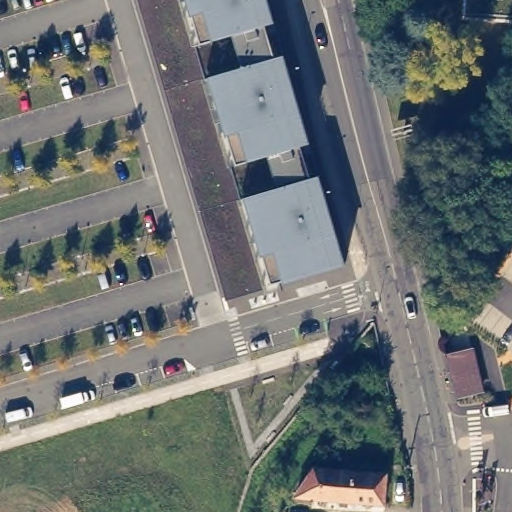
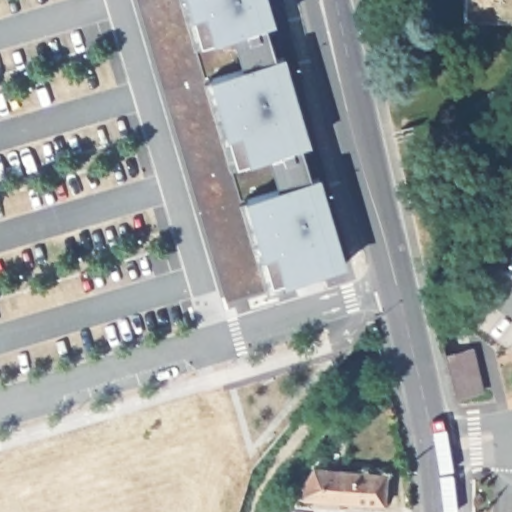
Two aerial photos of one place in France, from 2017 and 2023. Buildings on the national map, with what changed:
unchanged [(268,25),(278,56),(286,53),(313,145),(305,149),(311,176),(321,173),(348,264),(285,284),(226,301),(137,0),(270,0),(277,22),(268,25)]
unchanged [(466,0),(512,0),(512,22),(464,19),(466,0)]
unchanged [(472,347),(484,389),(458,397),(457,396),(445,355),(472,347)]
unchanged [(297,491),(315,462),(387,468),(385,498),(312,493),(311,498),(298,497),(299,491),(297,491)]

